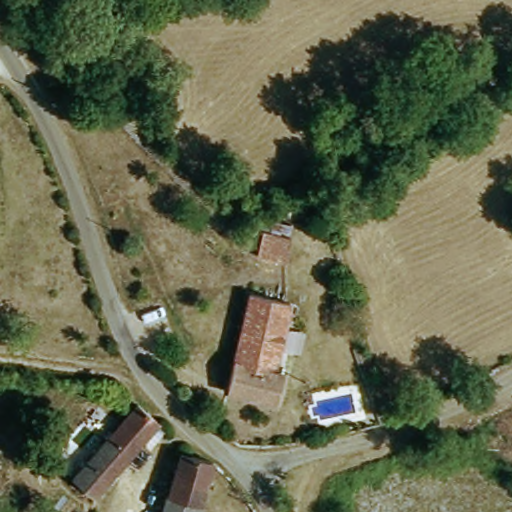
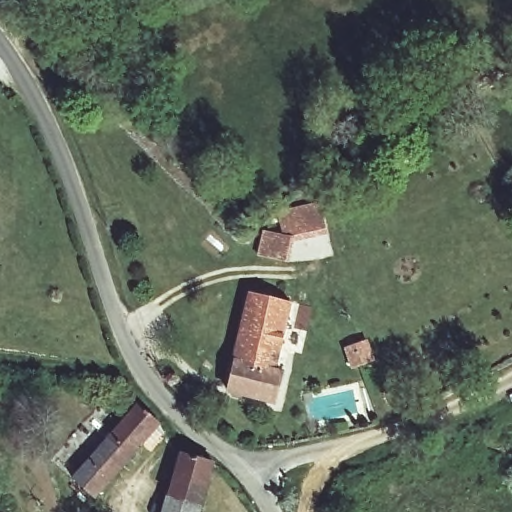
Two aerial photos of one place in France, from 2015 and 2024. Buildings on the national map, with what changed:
new [(293,226),(279,223),(276,212),(318,203),(326,234),(290,244),(293,226)]
unchanged [(262,233),(269,234),(271,222),(293,226),(288,262),(258,258),(262,233)]
unchanged [(279,352),(286,353),(278,405),(228,397),(249,295),(293,301),(279,352)]
unchanged [(161,430),(93,502),(84,493),(68,476),(138,407),(161,430)]
unchanged [(212,461),(200,512),(165,512),(180,454),(212,461)]

